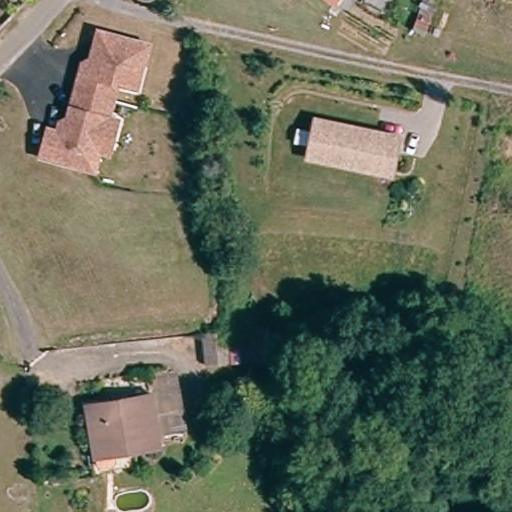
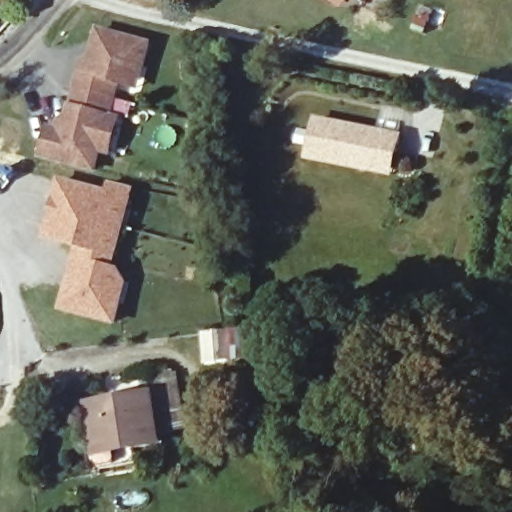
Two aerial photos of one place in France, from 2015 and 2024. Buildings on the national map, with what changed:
unchanged [(136,79),(127,77),(121,95),(85,86),(89,70),(90,58),(99,59),(105,27),(155,37),(151,59),(146,81),(136,79)]
unchanged [(121,147),(111,145),(107,165),(53,154),(59,127),(69,130),(71,118),(77,119),(85,86),(121,95),(119,110),(129,112),(121,147)]
unchanged [(381,171),(313,157),(319,120),(404,137),(398,164),(395,174),(381,171)]
new [(107,191),(110,181),(136,189),(117,265),(130,284),(119,327),(60,311),(75,249),(42,240),(59,179),(107,191)]
unchanged [(246,332),(250,359),(228,362),(225,335),(246,332)]
unchanged [(175,368),(181,428),(155,430),(151,393),(149,371),(175,368)]
unchanged [(95,455),(93,441),(90,400),(148,394),(151,393),(155,430),(155,435),(155,446),(95,455)]

